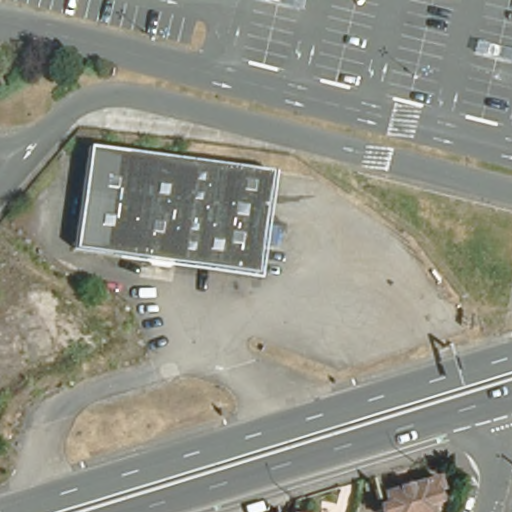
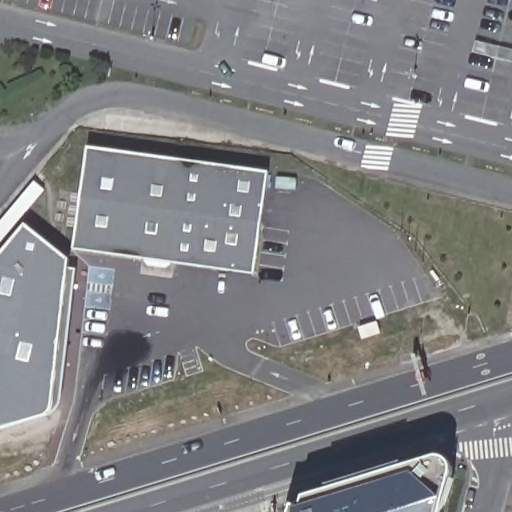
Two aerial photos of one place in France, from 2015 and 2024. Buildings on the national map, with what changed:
unchanged [(115,261),(116,251),(76,247),(86,143),(266,161),(257,252),(255,265),(246,265),(136,253),(136,263),(115,261)]
new [(0,256),(26,226),(69,260),(51,413),(0,430),(0,256)]
unchanged [(154,382),(155,386),(150,387),(154,382)]
new [(291,512),(294,501),(433,458),(440,456),(447,458),(451,461),(453,467),(454,471),(452,478),(442,512),(291,512)]
demolished [(383,504),(380,495),(432,479),(436,490),(428,492),(432,503),(425,505),(427,512),(377,512),(376,506),(383,504)]

